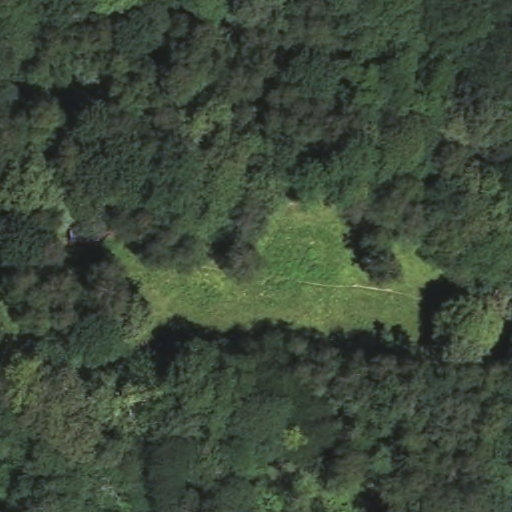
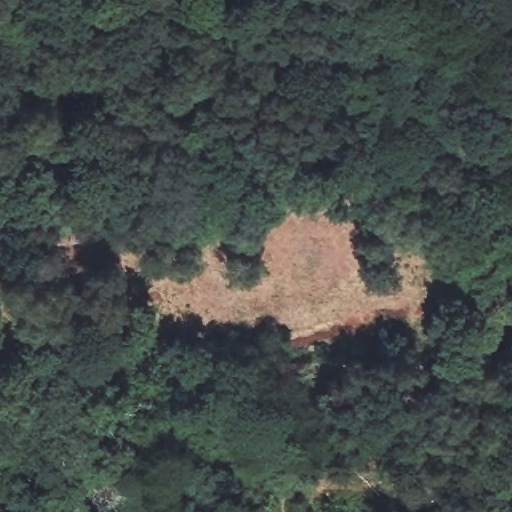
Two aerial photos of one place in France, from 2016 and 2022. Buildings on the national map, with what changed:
unchanged [(95,214),(95,242),(65,242),(65,218),(95,214)]

